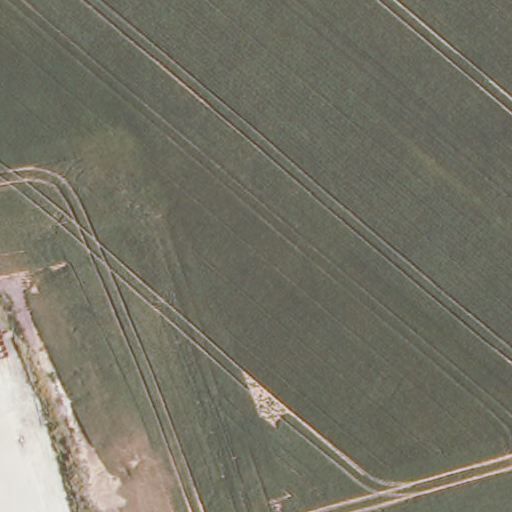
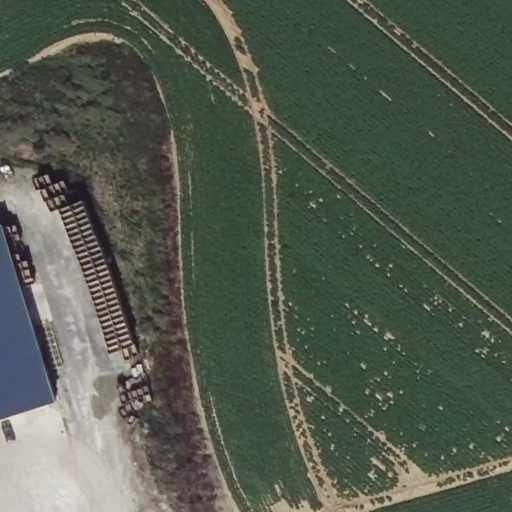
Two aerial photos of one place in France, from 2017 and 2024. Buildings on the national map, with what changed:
new [(58,396),(0,415),(0,227),(6,225),(58,396)]

